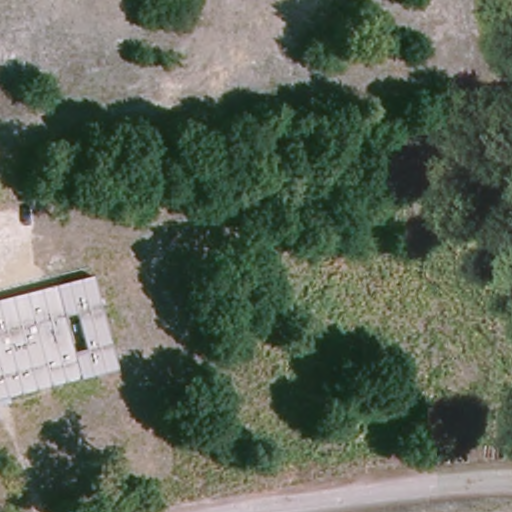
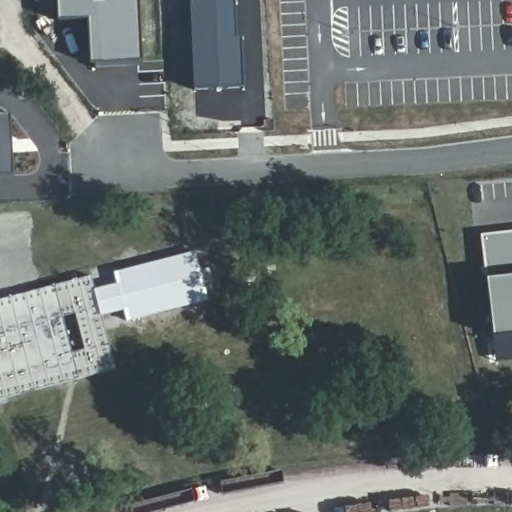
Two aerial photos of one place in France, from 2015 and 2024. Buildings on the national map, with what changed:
new [(90,64),(89,20),(59,21),(58,0),(138,0),(142,61),(90,64)]
new [(240,38),(243,86),(194,89),(190,0),(235,0),(237,38),(240,38)]
new [(12,176),(0,176),(0,115),(10,115),(12,176)]
new [(493,337),(480,236),(512,231),(512,335),(493,337)]
unchanged [(95,290),(117,284),(114,274),(195,252),(201,297),(127,322),(124,310),(102,316),(116,369),(77,380),(52,287),(91,275),(95,290)]
unchanged [(77,380),(0,401),(0,301),(52,287),(77,380)]
new [(497,362),(493,337),(512,335),(512,360),(497,362)]

